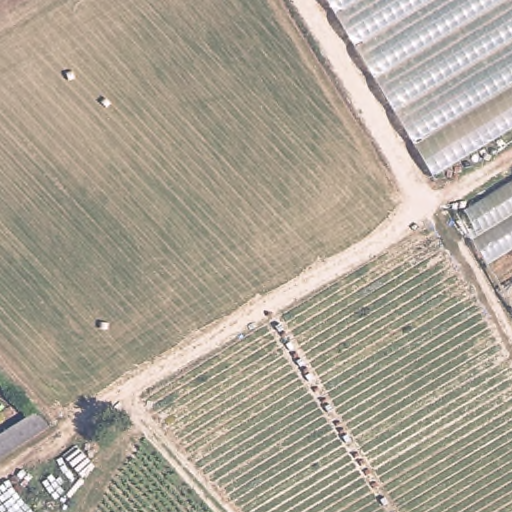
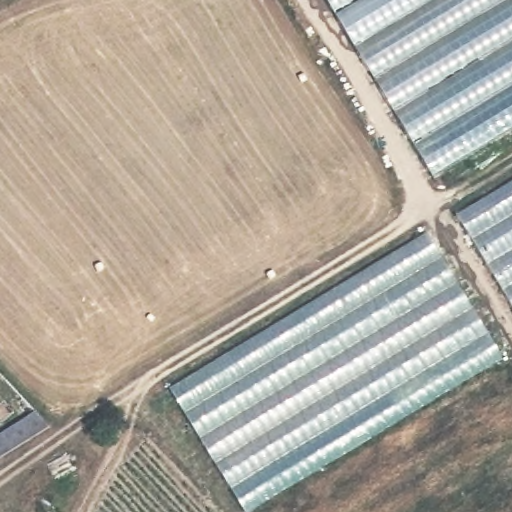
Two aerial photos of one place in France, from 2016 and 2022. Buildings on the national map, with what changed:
new [(324,0),(340,0),(335,3),(328,7),(324,0)]
unchanged [(340,0),(512,0),(512,135),(435,183),(328,7),(340,0)]
unchanged [(512,185),(512,308),(460,215),(512,185)]
new [(242,512),(168,389),(427,232),(503,360),(252,512),(242,512)]
unchanged [(50,428),(0,458),(0,433),(33,412),(50,428)]

